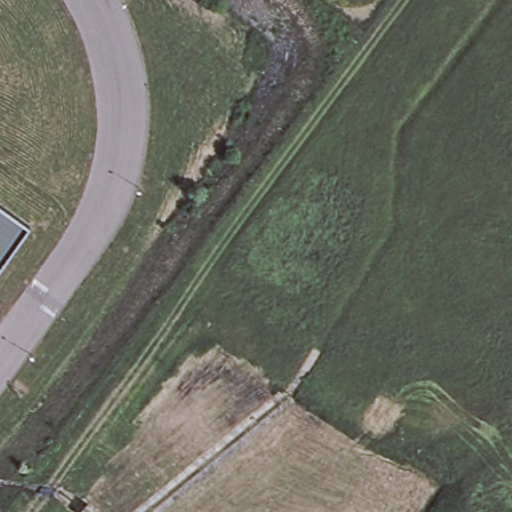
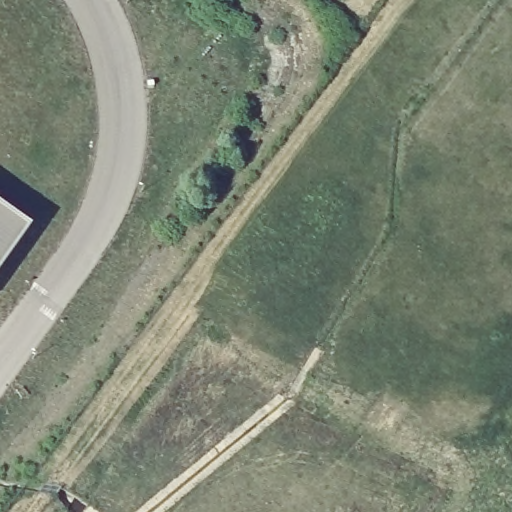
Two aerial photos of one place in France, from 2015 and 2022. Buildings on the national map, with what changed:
unchanged [(0,263),(0,207),(26,226),(0,263)]

